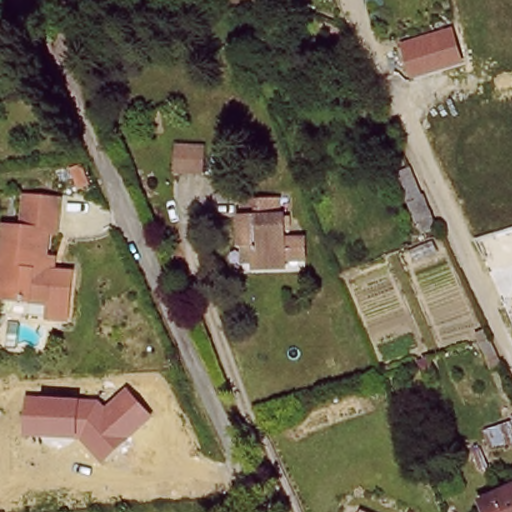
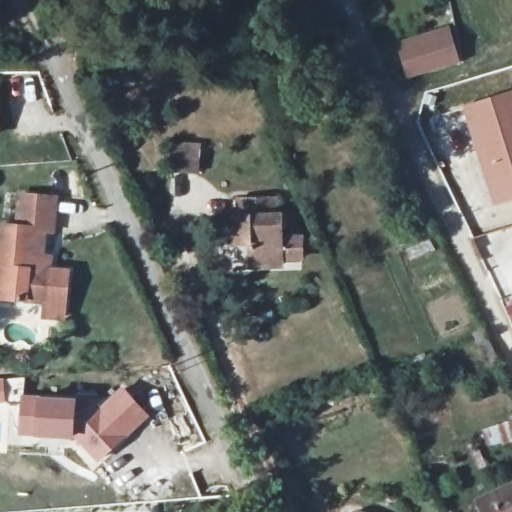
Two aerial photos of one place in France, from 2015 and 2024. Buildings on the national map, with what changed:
unchanged [(399,42),(448,25),(461,63),(411,77),(399,42)]
new [(512,200),(492,206),(460,104),(512,88),(512,200)]
unchanged [(201,172),(173,170),(174,144),(203,145),(201,172)]
unchanged [(394,165),(408,160),(438,223),(425,227),(394,165)]
unchanged [(50,198),(47,227),(40,230),(38,266),(62,268),(60,316),(42,315),(42,298),(0,296),(0,228),(12,230),(15,195),(50,198)]
unchanged [(235,241),(233,216),(238,215),(237,196),(274,195),(274,211),(282,212),(281,235),(302,235),(303,256),(283,257),(284,266),(253,266),(236,266),(235,241)]
unchanged [(96,398),(103,407),(125,388),(151,415),(102,462),(79,437),(23,435),(24,395),(96,398)]
unchanged [(512,512),(485,512),(477,496),(512,480),(512,512)]

